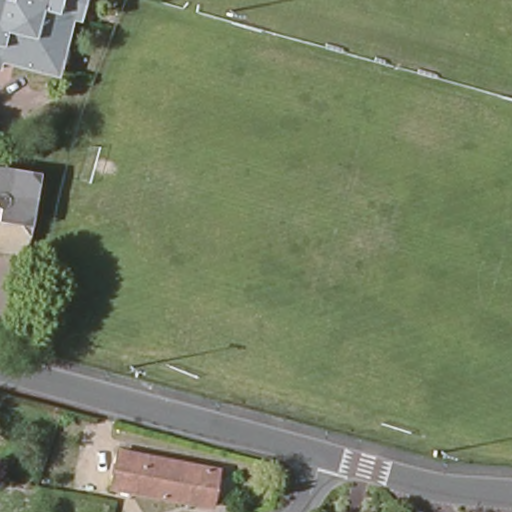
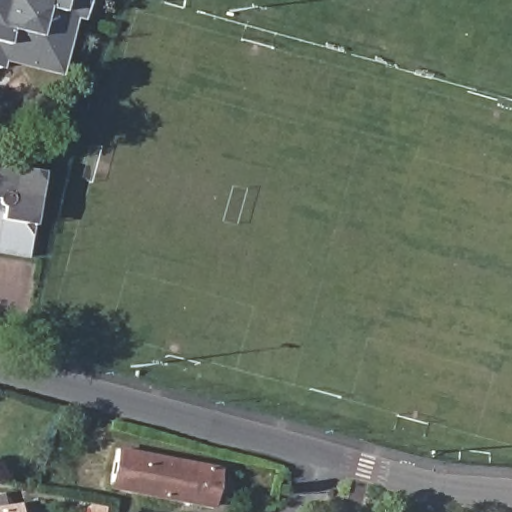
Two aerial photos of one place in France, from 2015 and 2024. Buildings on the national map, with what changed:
unchanged [(18,60),(13,54),(13,48),(1,45),(0,51),(0,0),(7,0),(15,2),(16,0),(83,0),(79,17),(74,16),(68,45),(61,71),(50,69),(18,60)]
unchanged [(29,260),(0,255),(0,167),(43,174),(29,260)]
unchanged [(222,471),(214,508),(114,487),(122,450),(222,471)]
new [(23,512),(0,512),(0,506),(22,502),(23,512)]

